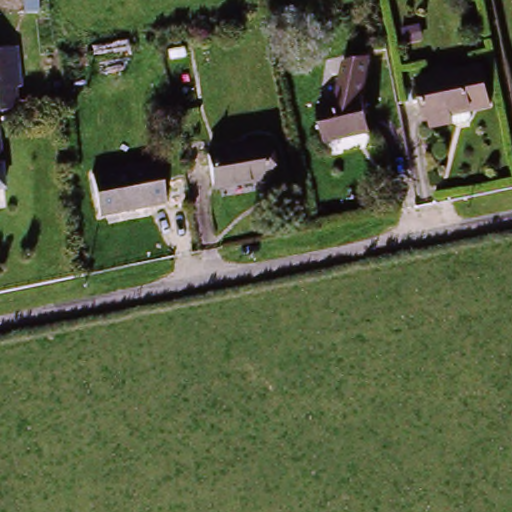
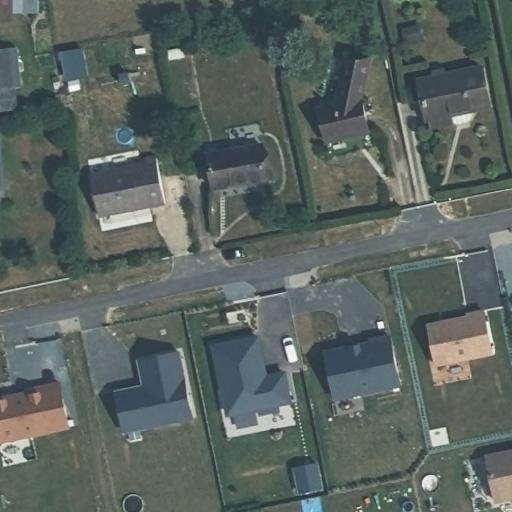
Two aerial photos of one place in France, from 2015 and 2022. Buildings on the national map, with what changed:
unchanged [(0,116),(0,54),(5,53),(7,67),(13,114),(0,116)]
unchanged [(315,144),(311,105),(327,100),(337,61),(363,56),(351,97),(360,136),(315,144)]
unchanged [(424,83),(482,72),(488,107),(432,119),(424,83)]
unchanged [(267,141),(272,172),(223,180),(218,149),(267,141)]
unchanged [(158,165),(164,205),(101,214),(95,174),(158,165)]
new [(467,314),(466,312),(485,308),(494,352),(435,367),(425,323),(467,314)]
new [(346,345),(368,339),(390,334),(402,386),(334,402),(322,351),(346,345)]
new [(258,335),(268,374),(285,370),(292,405),(254,411),(256,417),(237,422),(235,416),(227,417),(210,345),(258,335)]
new [(180,351),(192,417),(122,433),(112,390),(142,385),(136,360),(180,351)]
new [(26,392),(25,389),(42,386),(50,431),(0,440),(0,396),(26,392)]
new [(487,457),(512,453),(512,499),(495,502),(487,457)]

